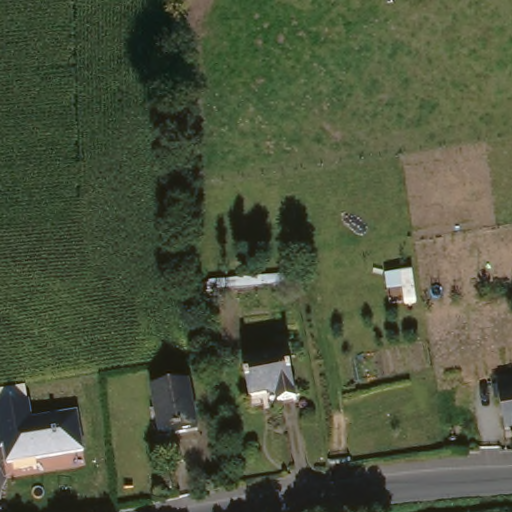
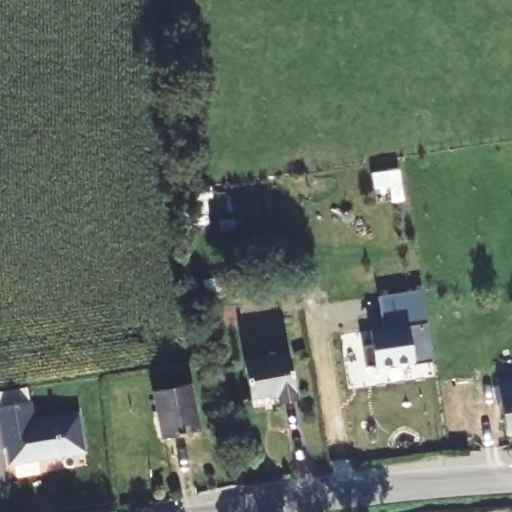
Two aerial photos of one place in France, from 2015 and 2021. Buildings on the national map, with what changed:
new [(381,338),(379,325),(392,323),(386,289),(431,282),(443,357),(423,360),(422,354),(375,361),(371,340),(381,338)]
unchanged [(286,353),(294,398),(248,406),(240,361),(286,353)]
unchanged [(504,431),(497,385),(512,382),(512,430),(504,431)]
unchanged [(150,395),(187,387),(195,434),(159,441),(150,395)]
unchanged [(35,420),(80,412),(86,450),(11,462),(4,425),(1,426),(0,417),(0,406),(31,400),(35,420)]

